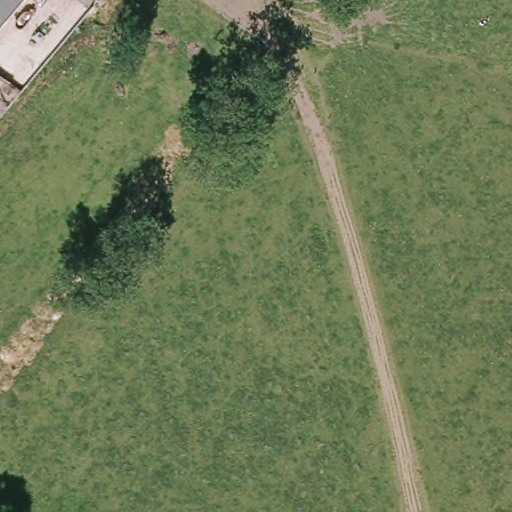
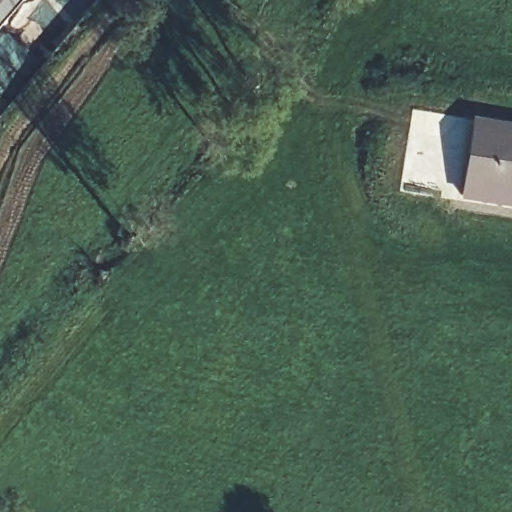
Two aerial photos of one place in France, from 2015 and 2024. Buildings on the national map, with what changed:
unchanged [(0,24),(0,0),(20,0),(0,24)]
new [(473,120),(512,125),(512,210),(461,202),(473,120)]

